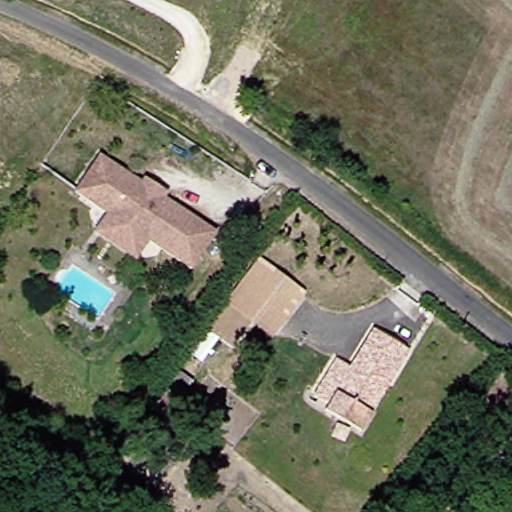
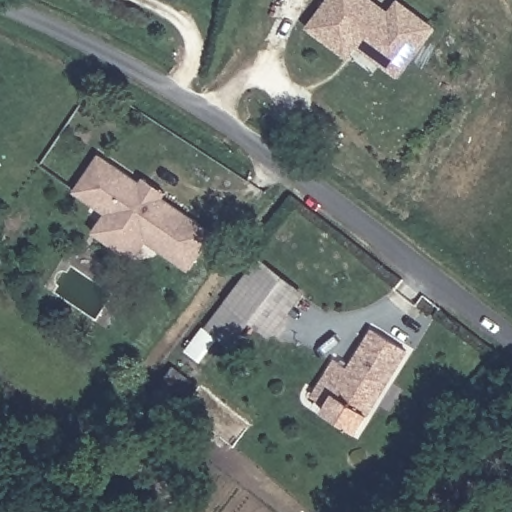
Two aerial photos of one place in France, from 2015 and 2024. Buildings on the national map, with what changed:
new [(376,0),(388,9),(396,0),(398,0),(435,26),(398,76),(357,48),(349,56),(305,28),(327,0),(376,0)]
unchanged [(108,209),(76,186),(103,150),(143,180),(147,174),(169,189),(166,195),(200,219),(216,231),(212,237),(191,268),(148,238),(135,257),(93,227),(108,209)]
unchanged [(243,324),(229,339),(205,321),(217,307),(249,265),(296,300),(263,342),(243,324)]
unchanged [(354,437),(317,417),(319,413),(304,404),(327,362),(340,369),(361,333),(402,354),(383,385),(363,419),(354,437)]

